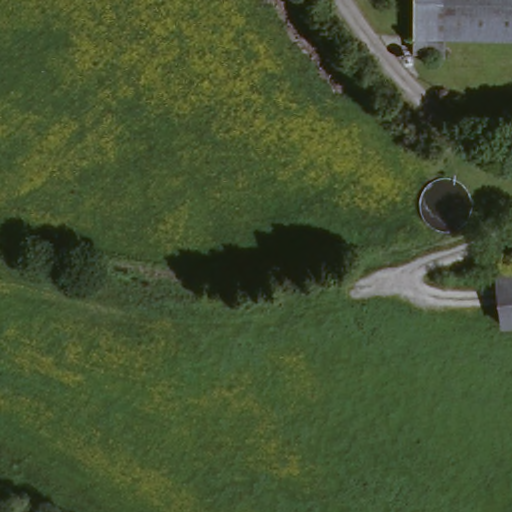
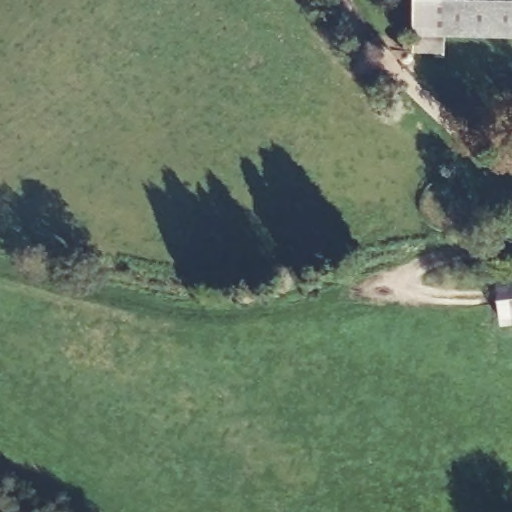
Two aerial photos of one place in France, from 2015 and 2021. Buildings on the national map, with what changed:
unchanged [(440,56),(410,56),(410,0),(512,0),(512,38),(441,38),(440,56)]
unchanged [(494,277),(512,275),(512,325),(500,326),(494,277)]

